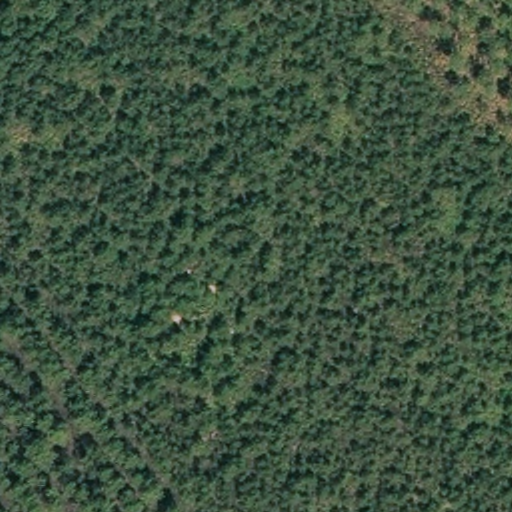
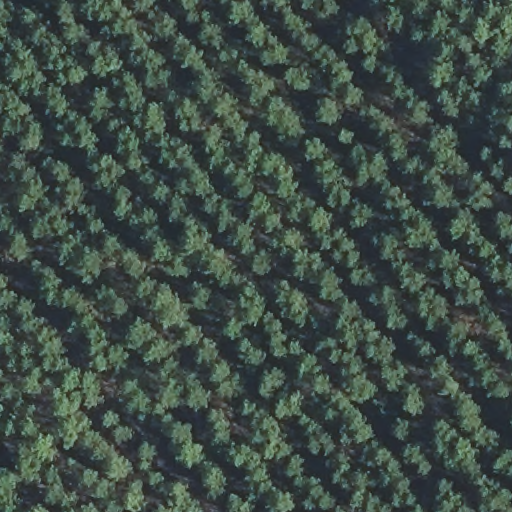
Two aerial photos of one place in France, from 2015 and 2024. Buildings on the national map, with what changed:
[]

